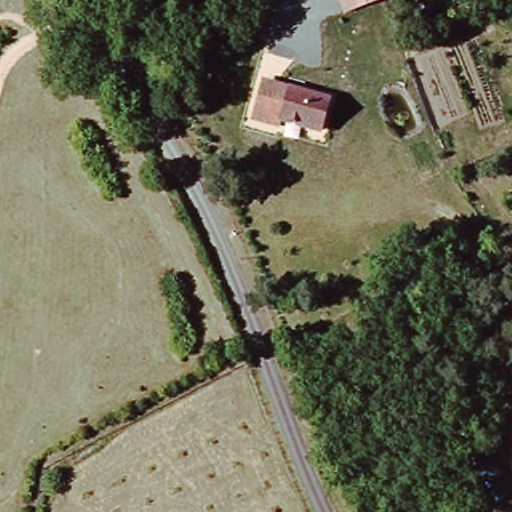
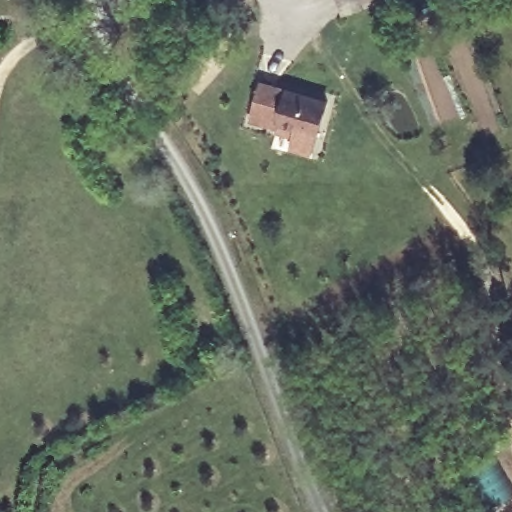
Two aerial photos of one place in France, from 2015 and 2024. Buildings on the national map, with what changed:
unchanged [(346,14),(340,0),(379,0),(346,14)]
unchanged [(255,113),(261,98),(268,77),(331,98),(321,129),(283,116),(281,121),(255,113)]

